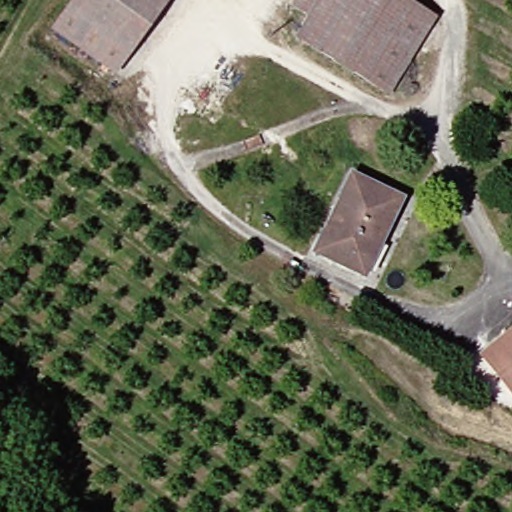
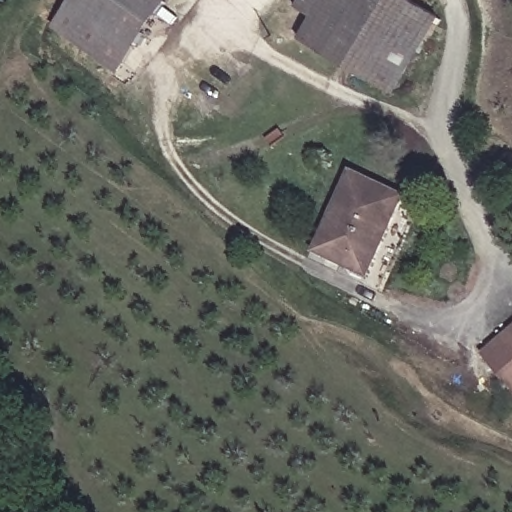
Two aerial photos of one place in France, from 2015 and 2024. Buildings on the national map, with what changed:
unchanged [(163,9),(128,52),(66,6),(70,0),(151,0),(163,9)]
unchanged [(163,9),(151,0),(170,0),(163,9)]
unchanged [(310,50),(297,42),(310,21),(294,11),(300,0),(337,0),(310,50)]
unchanged [(438,21),(390,98),(310,50),(337,0),(404,0),(438,21)]
unchanged [(128,52),(109,78),(47,32),(66,6),(128,52)]
unchanged [(348,181),(397,203),(364,277),(343,267),(315,253),(320,242),(348,181)]
unchanged [(482,349),(512,331),(512,395),(510,396),(482,349)]

